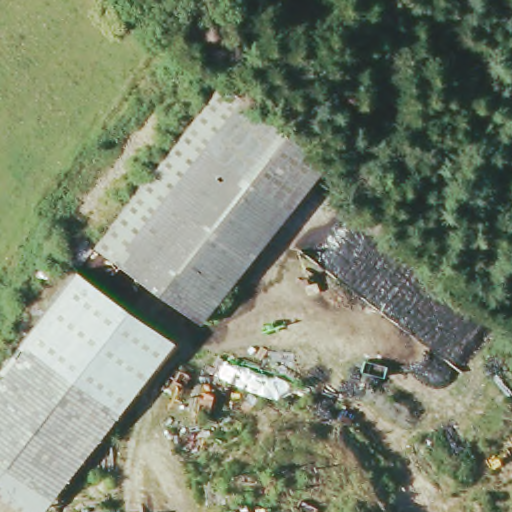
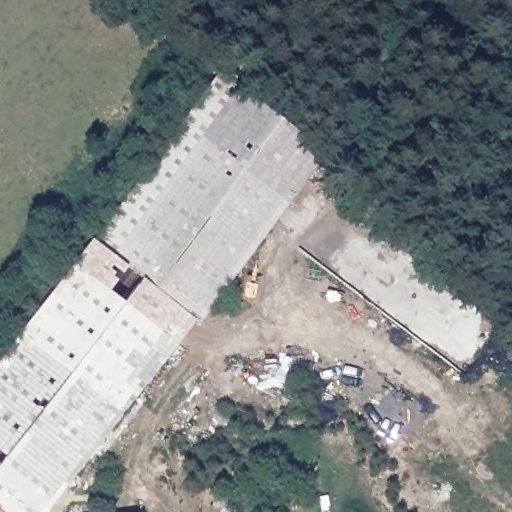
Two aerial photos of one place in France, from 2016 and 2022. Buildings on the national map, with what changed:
unchanged [(326,155),(200,325),(92,245),(217,76),(326,155)]
unchanged [(44,512),(15,512),(0,504),(0,363),(76,266),(174,343),(44,512)]

